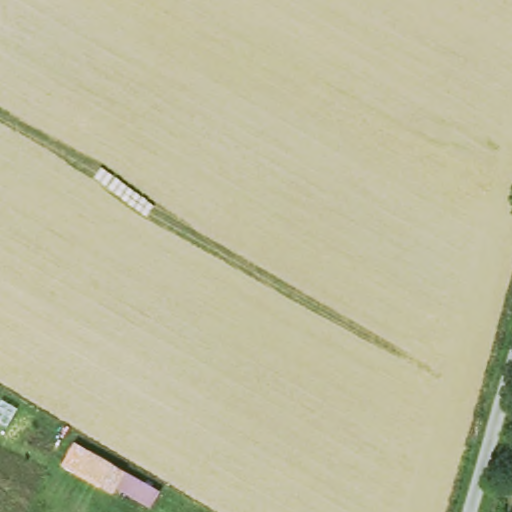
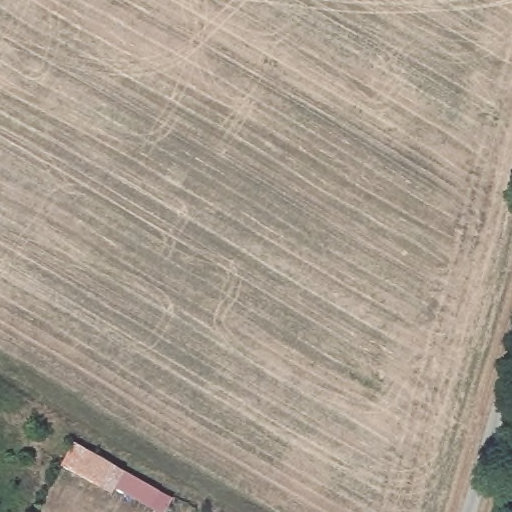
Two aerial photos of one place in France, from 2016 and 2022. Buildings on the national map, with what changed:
unchanged [(160,490),(151,510),(116,490),(114,495),(59,465),(74,442),(160,490)]

